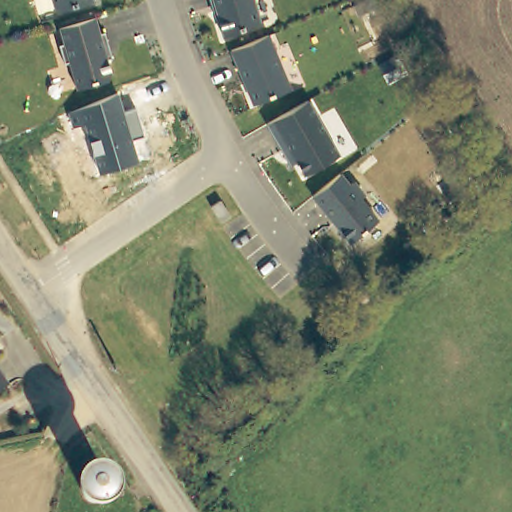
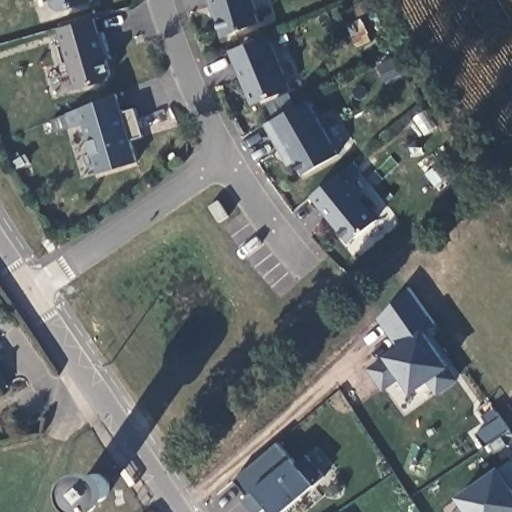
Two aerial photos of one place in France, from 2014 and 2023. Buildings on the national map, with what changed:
unchanged [(95,0),(63,10),(56,6),(55,0),(95,0)]
unchanged [(262,21),(225,36),(218,9),(215,10),(212,0),(256,0),(262,21)]
unchanged [(94,17),(100,35),(104,33),(110,58),(106,59),(112,77),(76,88),(68,63),(64,64),(59,45),(62,44),(59,29),(94,17)]
unchanged [(233,49),(270,34),(292,88),(255,103),(233,49)]
unchanged [(116,94),(122,112),(134,108),(142,135),(130,139),(137,162),(98,173),(83,124),(71,127),(67,113),(116,94)]
unchanged [(341,153),(306,173),(295,153),(288,157),(269,122),(309,99),(341,153)]
unchanged [(314,194),(316,192),(341,172),(350,184),(355,180),(366,194),(361,197),(379,219),(352,240),(314,194)]
unchanged [(212,205),(221,199),(231,215),(222,221),(212,205)]
new [(438,395),(430,381),(412,394),(401,380),(384,390),(367,369),(383,355),(399,344),(378,320),(410,289),(434,324),(425,332),(449,367),(458,380),(438,395)]
unchanged [(1,354),(20,378),(0,393),(0,356),(1,354)]
new [(282,512),(273,512),(269,508),(262,512),(255,512),(244,500),(249,495),(235,478),(279,443),(292,457),(296,463),(307,454),(325,476),(315,485),(282,512)]
new [(499,467),(510,461),(512,463),(512,512),(467,512),(456,496),(499,467)]

